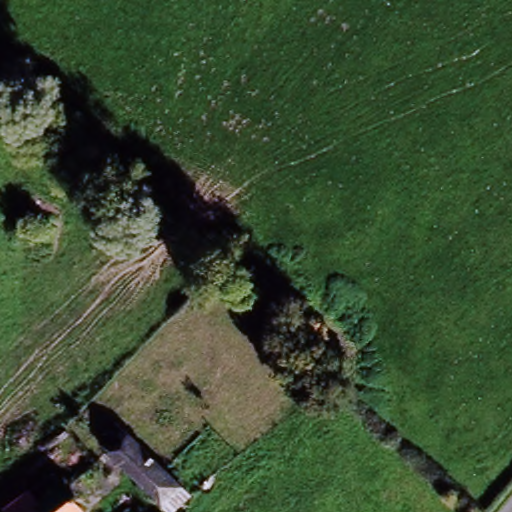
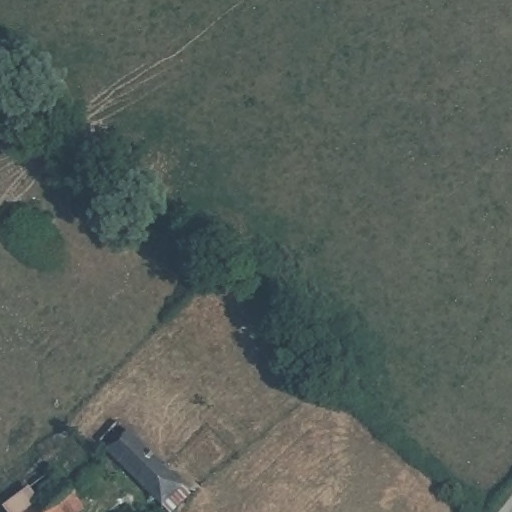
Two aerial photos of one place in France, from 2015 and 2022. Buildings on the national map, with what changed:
unchanged [(112,433),(119,426),(162,470),(184,492),(167,510),(100,445),(112,433)]
unchanged [(79,507),(72,512),(30,512),(65,487),(79,507)]

